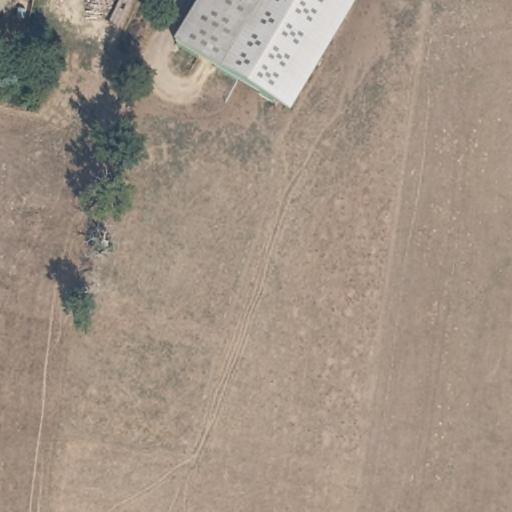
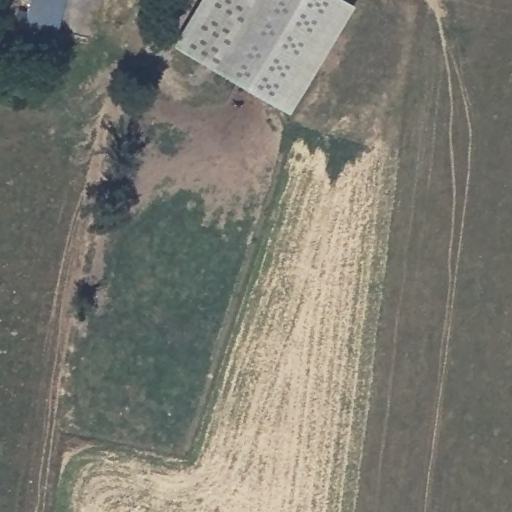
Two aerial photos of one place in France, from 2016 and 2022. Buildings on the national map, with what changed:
new [(24,25),(30,0),(66,0),(58,32),(24,25)]
unchanged [(349,0),(356,4),(291,113),(173,44),(200,0),(349,0)]

